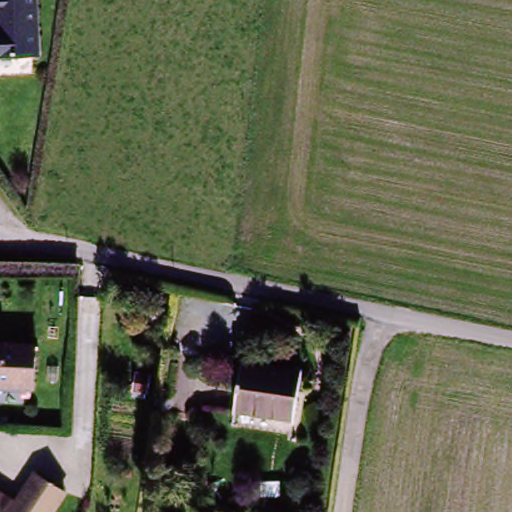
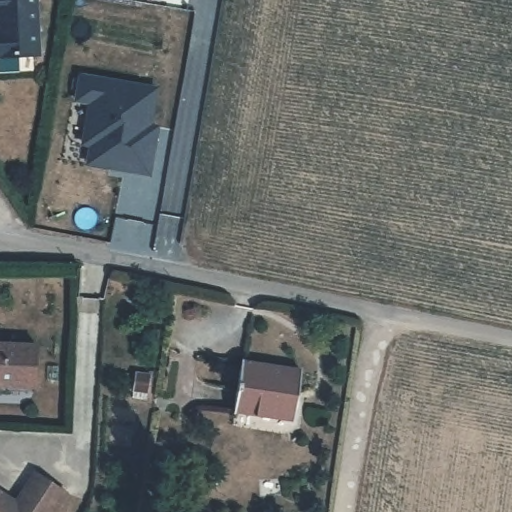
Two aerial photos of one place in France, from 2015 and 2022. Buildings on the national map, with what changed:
unchanged [(1,61),(0,61),(0,36),(2,36),(0,0),(41,0),(44,59),(1,61)]
new [(81,76),(157,91),(150,128),(157,129),(149,176),(87,165),(91,147),(83,145),(91,104),(76,101),(81,76)]
unchanged [(0,397),(0,354),(31,355),(29,398),(0,397)]
unchanged [(233,405),(240,358),(300,368),(292,414),(233,405)]
unchanged [(148,393),(133,391),(135,371),(151,374),(148,393)]
unchanged [(35,483),(65,503),(59,512),(16,512),(35,483)]
unchanged [(0,506),(8,512),(0,512),(0,502),(2,503),(0,506)]
unchanged [(12,510),(15,512),(10,512),(12,510)]

